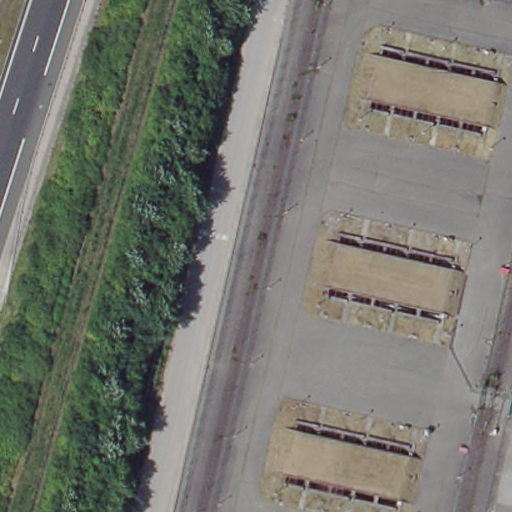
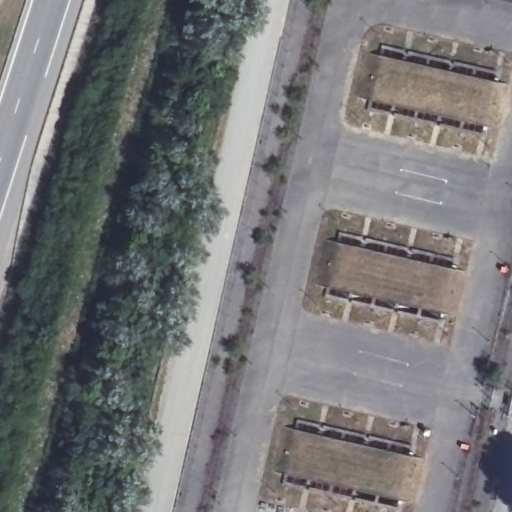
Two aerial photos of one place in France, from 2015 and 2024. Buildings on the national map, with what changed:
unchanged [(363,102),(380,53),(504,82),(493,131),(363,102)]
unchanged [(329,293),(342,241),(458,269),(446,318),(329,293)]
unchanged [(291,426),(422,455),(413,502),(280,472),(291,426)]

